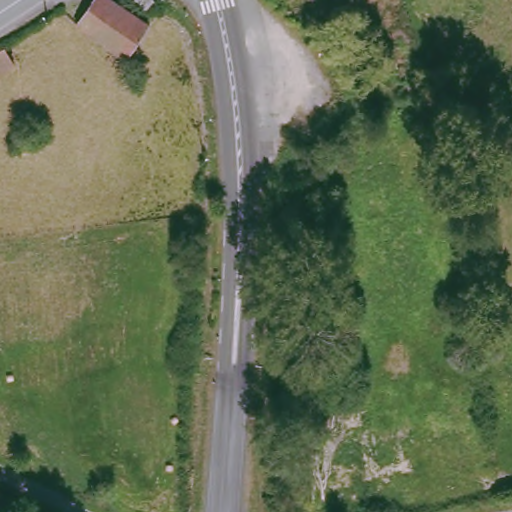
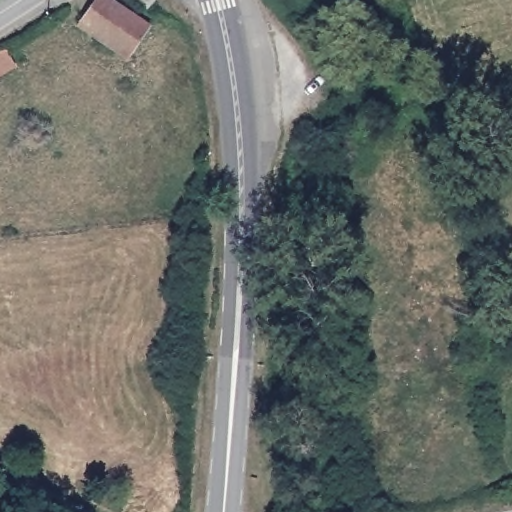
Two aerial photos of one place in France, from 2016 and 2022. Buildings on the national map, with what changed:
unchanged [(127,61),(77,28),(99,0),(100,0),(147,31),(127,61)]
unchanged [(115,1),(115,0),(118,0),(115,1)]
unchanged [(12,63),(0,71),(0,46),(1,45),(12,63)]

